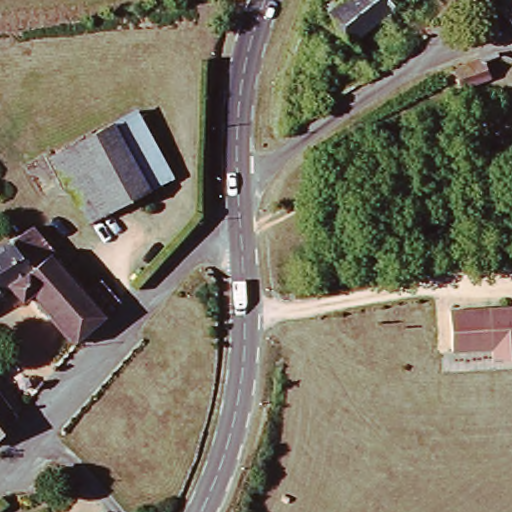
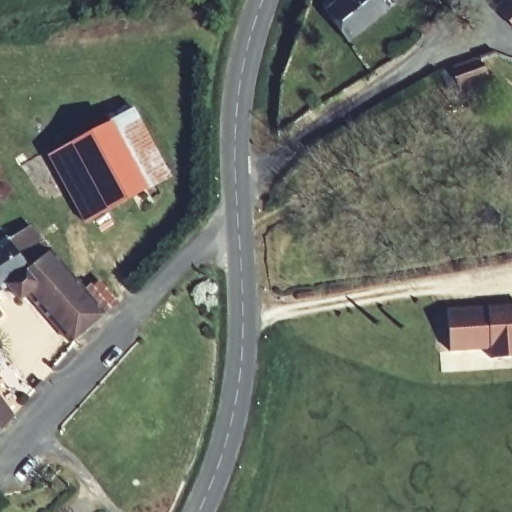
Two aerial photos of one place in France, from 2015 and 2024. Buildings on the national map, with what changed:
unchanged [(393,0),(348,36),(326,10),(329,7),(323,0),(324,0),(334,0),(336,1),(338,0),(393,0)]
unchanged [(508,0),(510,1),(511,0),(512,0),(512,26),(497,10),(505,0),(508,0)]
unchanged [(440,69),(481,55),(487,73),(459,84),(457,80),(447,84),(440,69)]
unchanged [(60,148),(124,116),(157,185),(92,216),(60,148)]
unchanged [(70,349),(17,283),(0,294),(0,251),(35,230),(59,260),(72,250),(99,281),(117,305),(70,349)]
unchanged [(512,308),(512,360),(497,360),(495,350),(455,353),(452,312),(512,308)]
unchanged [(7,425),(0,433),(0,417),(7,425)]

